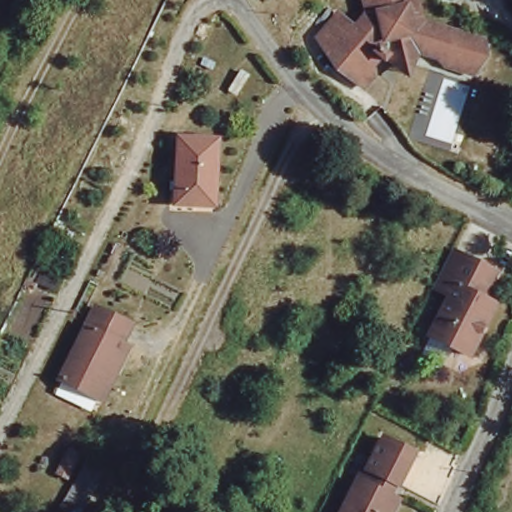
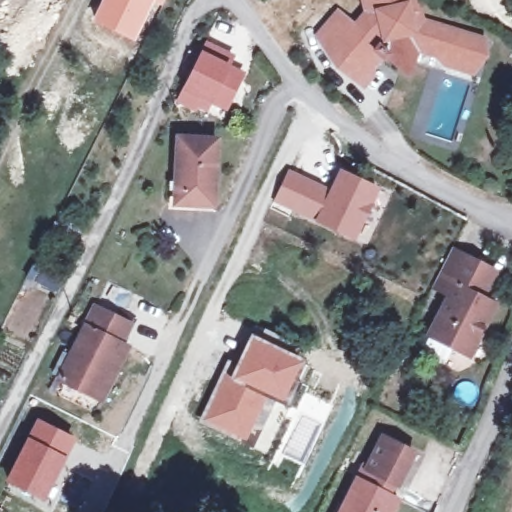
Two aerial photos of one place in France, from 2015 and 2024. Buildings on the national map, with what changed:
new [(163,5),(154,1),(135,41),(92,22),(102,0),(166,0),(163,5)]
unchanged [(455,64),(457,58),(426,49),(415,73),(393,55),(390,59),(380,51),(371,61),(375,65),(363,79),(343,61),(325,33),(345,10),(354,17),(372,33),(380,25),(374,0),(426,0),(430,20),(492,39),(485,59),(481,72),(455,64)]
new [(205,41),(236,56),(232,65),(246,73),(227,112),(210,104),(207,111),(197,107),(195,112),(176,101),(205,41)]
unchanged [(195,205),(174,203),(166,203),(167,180),(175,181),(177,137),(216,139),(212,200),(212,206),(195,205)]
new [(290,169),(330,188),(340,167),(380,187),(355,242),(274,202),(290,169)]
unchanged [(494,309),(469,361),(430,342),(451,300),(433,291),(451,255),(490,274),(475,300),(494,309)]
unchanged [(98,401),(64,383),(100,312),(134,329),(125,348),(132,352),(118,378),(105,404),(98,401)]
new [(250,332),(304,358),(282,404),(271,399),(228,375),(250,332)]
new [(222,372),(228,375),(271,399),(247,444),(198,422),(222,372)]
new [(36,417),(77,437),(45,502),(3,481),(36,417)]
unchanged [(347,512),(367,473),(370,475),(385,443),(416,458),(400,491),(394,503),(400,506),(397,512),(347,512)]
unchanged [(82,464),(99,473),(79,512),(75,512),(60,504),(82,464)]

